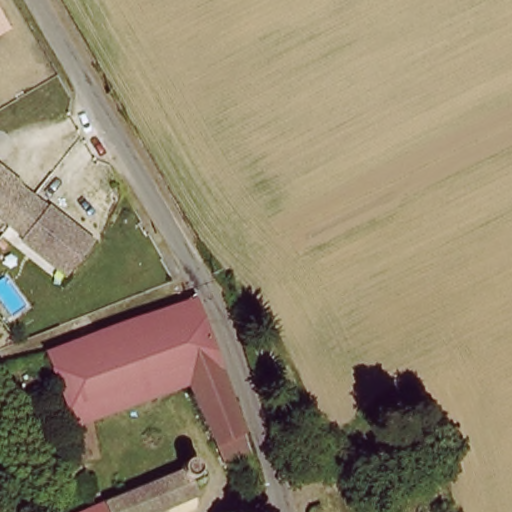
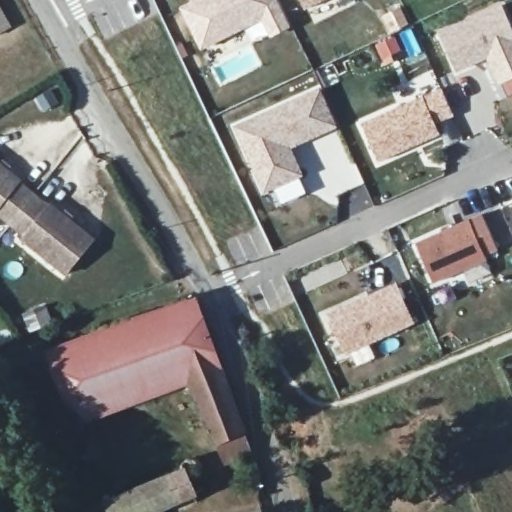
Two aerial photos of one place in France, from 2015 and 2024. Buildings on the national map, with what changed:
new [(278,0),(292,27),(270,38),(261,23),(201,50),(178,6),(191,0),(278,0)]
new [(297,0),(328,0),(303,13),(297,0)]
new [(512,30),(512,81),(498,87),(487,62),(454,76),(437,34),(501,6),(512,30)]
new [(319,84),(339,127),(293,148),(305,175),(300,178),(307,193),(279,205),(272,191),(261,195),(230,125),(319,84)]
new [(441,91),(453,120),(438,127),(441,136),(376,165),(360,126),(441,91)]
unchanged [(4,229),(0,226),(0,178),(13,188),(12,190),(26,202),(4,229)]
unchanged [(26,202),(40,213),(42,210),(87,246),(61,280),(47,268),(49,265),(4,229),(26,202)]
new [(483,216),(500,256),(433,287),(415,245),(483,216)]
new [(398,286),(415,326),(344,358),(326,317),(398,286)]
unchanged [(57,356),(97,340),(128,331),(197,311),(203,323),(205,329),(223,369),(237,401),(242,411),(253,436),(223,446),(192,385),(168,394),(92,422),(100,457),(87,461),(76,464),(67,430),(68,430),(79,427),(78,424),(48,360),(48,359),(57,356)]
unchanged [(164,476),(178,470),(180,461),(183,458),(186,456),(190,456),(195,458),(197,459),(199,462),(200,465),(200,467),(198,470),(197,472),(195,474),(189,477),(195,491),(151,512),(85,512),(95,508),(164,476)]

